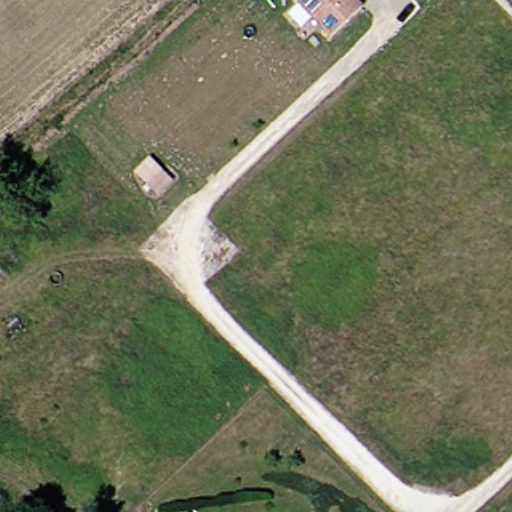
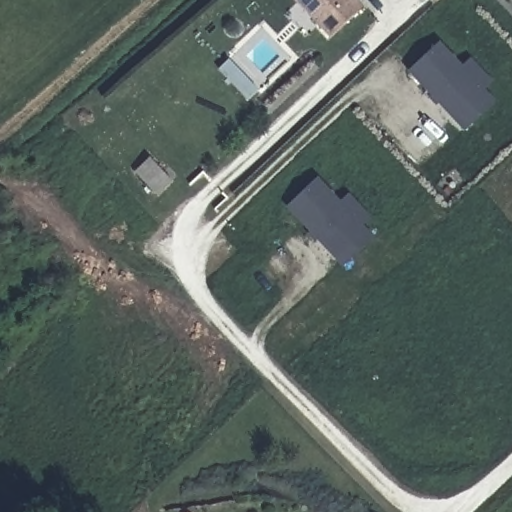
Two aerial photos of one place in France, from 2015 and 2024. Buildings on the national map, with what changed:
unchanged [(363,7),(332,38),(294,0),(357,0),(363,7)]
new [(464,67),(469,61),(489,81),(482,89),(496,103),(464,132),(408,76),(441,42),(464,67)]
new [(249,100),(244,94),(219,69),(229,59),(253,84),(259,90),(249,100)]
unchanged [(156,184),(170,169),(180,180),(166,194),(156,184)]
new [(340,203),(347,195),(369,217),(363,225),(374,234),(340,267),(285,209),(315,178),(340,203)]

